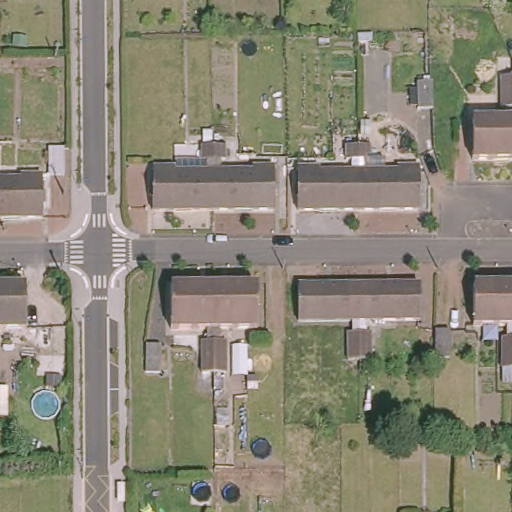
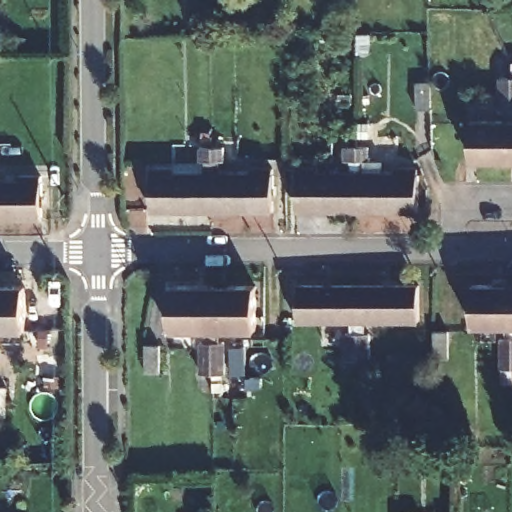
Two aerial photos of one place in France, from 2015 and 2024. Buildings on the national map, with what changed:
unchanged [(470,160),(470,119),(504,119),(503,107),(497,106),(497,77),(510,76),(510,160),(470,160)]
unchanged [(512,76),(512,160),(510,160),(510,76),(512,76)]
unchanged [(445,110),(429,111),(429,85),(443,85),(445,110)]
unchanged [(211,205),(151,205),(151,162),(173,162),(173,167),(205,167),(205,155),(197,156),(198,140),(210,140),(211,205)]
unchanged [(222,141),(223,156),(216,156),(216,167),(248,167),(248,162),(270,161),(271,205),(211,205),(210,140),(222,141)]
unchanged [(295,205),(295,163),(316,163),(315,166),(349,166),(349,155),(343,155),(342,141),(355,141),(355,205),(295,205)]
unchanged [(355,141),(366,141),(366,155),(372,155),(372,166),(394,167),(394,162),(416,163),(416,205),(355,205),(355,141)]
unchanged [(61,174),(45,175),(45,146),(60,146),(61,174)]
unchanged [(16,179),(16,175),(40,175),(40,217),(0,217),(0,179),(16,179)]
unchanged [(350,355),(350,327),(355,327),(355,316),(301,316),(301,280),(361,280),(361,355),(350,355)]
unchanged [(421,281),(421,317),(367,316),(367,327),(372,328),(373,355),(361,355),(361,280),(421,281)]
unchanged [(511,363),(499,362),(499,333),(505,333),(505,320),(471,320),(471,280),(510,281),(511,363)]
unchanged [(200,368),(199,337),(203,337),(203,325),(169,325),(168,281),(210,281),(211,368),(200,368)]
unchanged [(210,281),(254,281),(255,325),(248,325),(248,341),(223,341),(224,368),(211,368),(210,281)]
unchanged [(512,363),(511,363),(510,281),(512,281),(512,363)]
unchanged [(23,285),(23,328),(0,328),(0,285),(23,285)]
unchanged [(440,327),(441,357),(427,357),(427,326),(440,327)]
unchanged [(159,368),(143,368),(143,341),(158,341),(159,368)]

